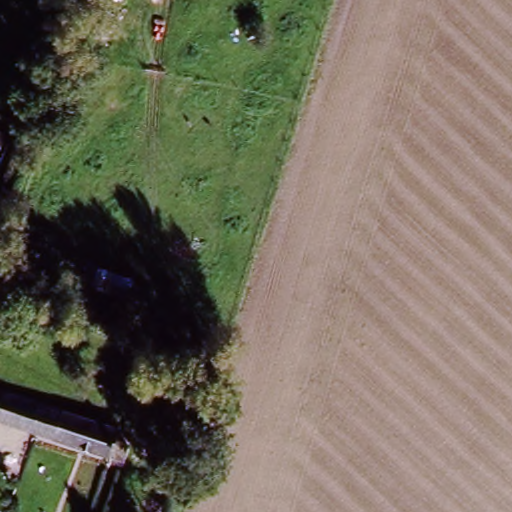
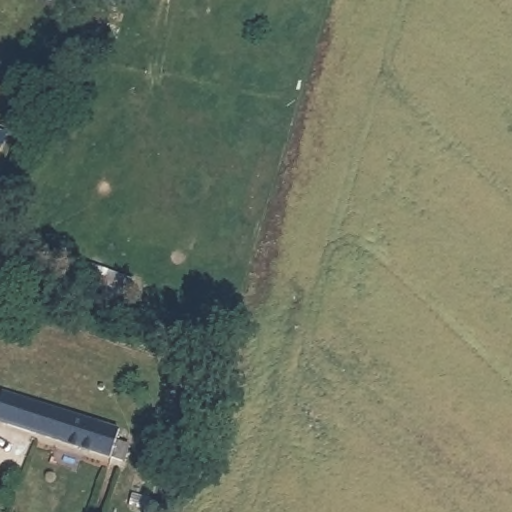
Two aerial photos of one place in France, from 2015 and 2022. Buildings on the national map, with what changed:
unchanged [(0,137),(0,130),(2,131),(0,137)]
unchanged [(29,437),(0,427),(0,400),(1,397),(117,437),(107,464),(29,437)]

